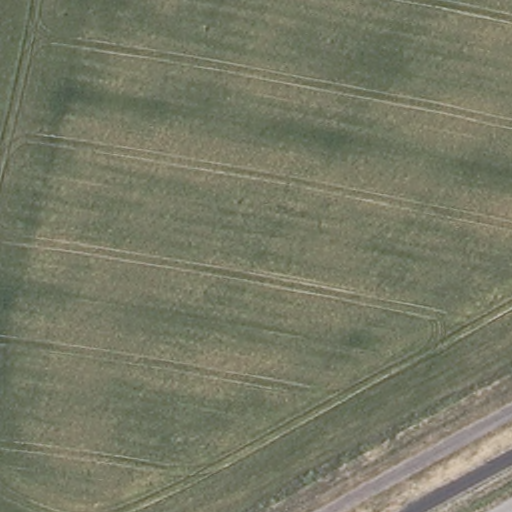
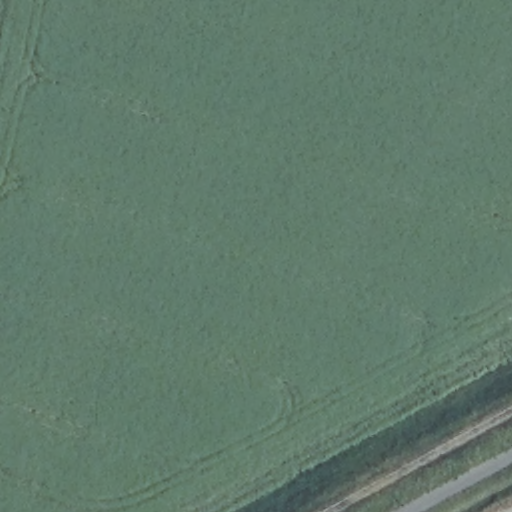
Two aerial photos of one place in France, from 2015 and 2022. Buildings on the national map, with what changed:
[]

